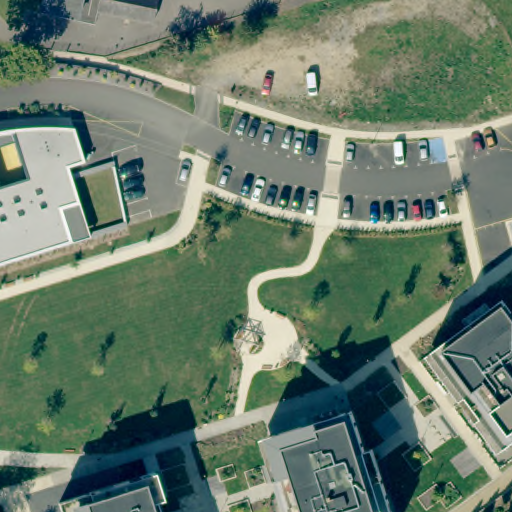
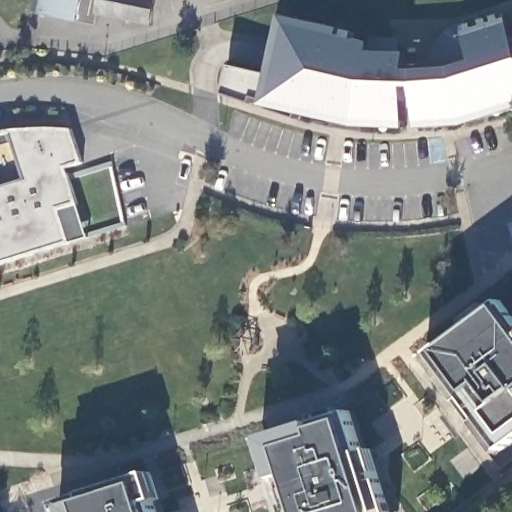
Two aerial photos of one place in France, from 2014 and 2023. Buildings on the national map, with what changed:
unchanged [(76,22),(39,14),(42,0),(81,0),(76,22)]
unchanged [(150,25),(95,13),(98,0),(156,0),(150,25)]
new [(270,74),(283,16),(362,34),(360,40),(375,43),(373,52),(410,54),(409,71),(433,70),(433,60),(435,49),(440,40),(448,31),(457,25),(467,21),(468,27),(509,15),(512,24),(512,111),(465,127),(420,129),(418,88),(409,89),(407,129),(356,128),(265,106),(251,102),(225,92),(232,66),(270,74)]
unchanged [(4,130),(39,128),(72,130),(84,163),(65,169),(89,237),(0,265),(0,131),(4,130)]
unchanged [(473,411),(440,367),(430,354),(443,344),(465,328),(466,327),(471,324),(497,304),(512,324),(512,347),(508,350),(512,355),(512,444),(502,451),(473,411)]
unchanged [(363,453),(366,462),(382,512),(290,512),(288,505),(280,480),(267,437),(301,427),(307,425),(314,423),(323,420),(350,411),(363,453)]
unchanged [(110,486),(128,481),(145,475),(156,512),(60,512),(57,503),(96,491),(104,489),(110,486)]

